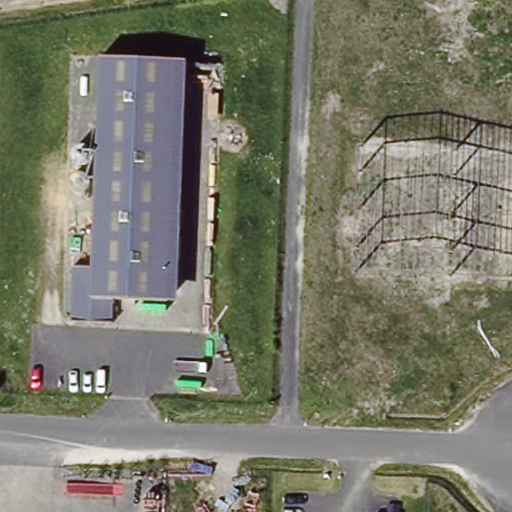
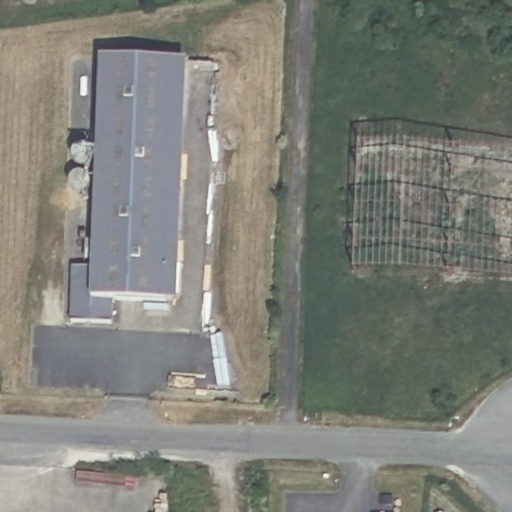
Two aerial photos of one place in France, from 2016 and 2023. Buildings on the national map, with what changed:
unchanged [(115,302),(112,327),(70,321),(73,271),(92,268),(90,197),(70,195),(74,145),(97,146),(100,62),(195,65),(182,303),(115,302)]

